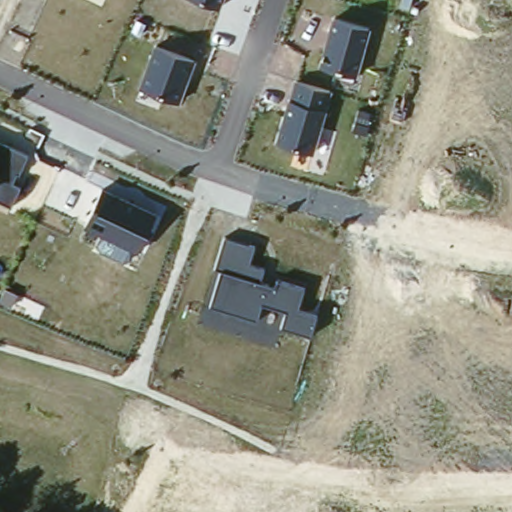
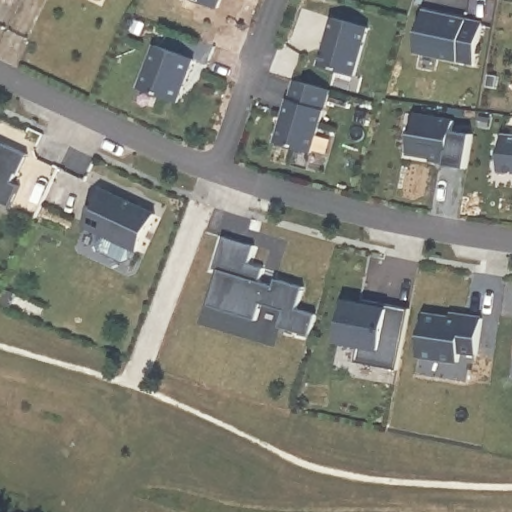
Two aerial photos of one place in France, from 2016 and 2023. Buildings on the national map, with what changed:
unchanged [(197,0),(222,0),(219,7),(197,0)]
new [(428,9),(487,21),(478,62),(419,49),(428,9)]
unchanged [(355,80),(318,70),(330,17),(370,27),(355,80)]
unchanged [(180,102),(139,87),(155,45),(196,61),(180,102)]
unchanged [(314,152),(277,143),(294,79),(333,90),(314,152)]
new [(417,109),(458,116),(456,126),(476,129),(470,163),(448,160),(449,155),(411,149),(417,109)]
new [(512,132),(512,168),(503,167),(506,132),(512,132)]
unchanged [(17,182),(23,185),(13,207),(0,202),(0,140),(28,154),(17,182)]
unchanged [(140,252),(85,226),(104,185),(156,209),(140,252)]
unchanged [(251,264),(264,270),(261,281),(275,284),(277,278),(305,287),(300,306),(317,312),(311,335),(281,327),(286,309),(262,302),(255,320),(274,326),(269,341),(207,320),(223,268),(213,266),(223,234),(257,244),(251,264)]
new [(355,300),(356,295),(373,298),(372,302),(383,305),(383,300),(406,304),(395,366),(353,357),(356,341),(335,337),(343,297),(355,300)]
new [(449,317),(450,312),(483,318),(477,355),(461,352),(459,363),(419,357),(425,313),(449,317)]

